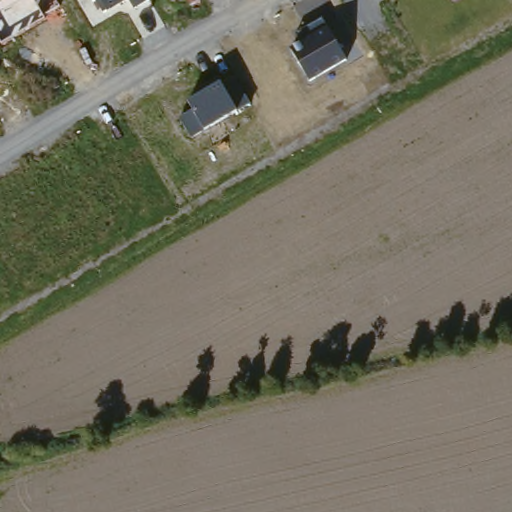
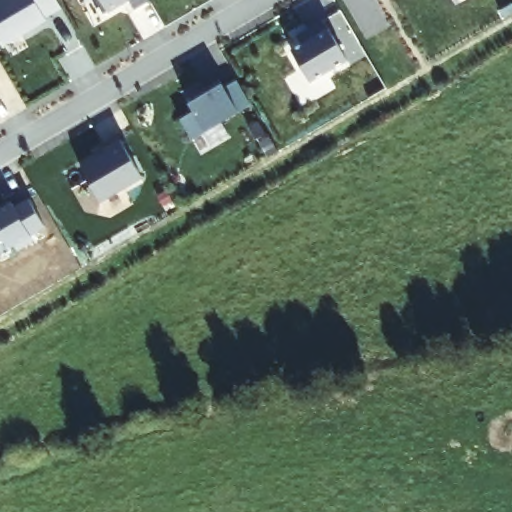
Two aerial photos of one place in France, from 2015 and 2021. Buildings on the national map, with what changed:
unchanged [(45,19),(1,43),(0,42),(0,0),(55,0),(60,8),(43,15),(45,19)]
unchanged [(96,0),(126,0),(104,13),(96,0)]
unchanged [(127,0),(148,0),(149,1),(133,10),(127,0)]
unchanged [(310,81),(290,48),(312,34),(308,28),(323,20),(348,60),(310,81)]
unchanged [(236,112),(205,130),(191,138),(180,120),(194,111),(189,102),(222,83),(227,93),(240,85),(250,105),(236,112)]
new [(106,152),(104,148),(119,139),(143,178),(101,202),(80,166),(106,152)]
new [(14,208),(29,199),(45,226),(30,234),(34,240),(18,249),(14,244),(0,252),(0,210),(11,203),(14,208)]

